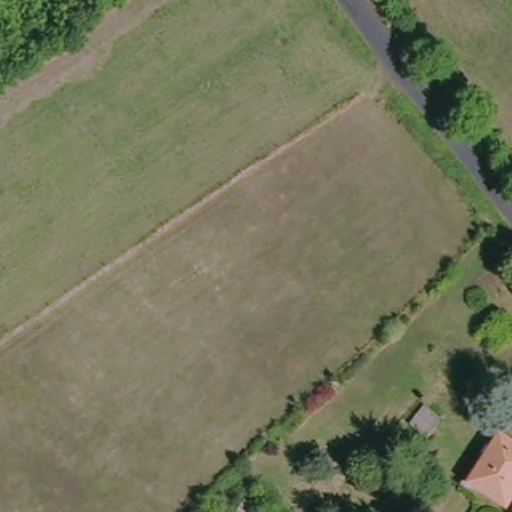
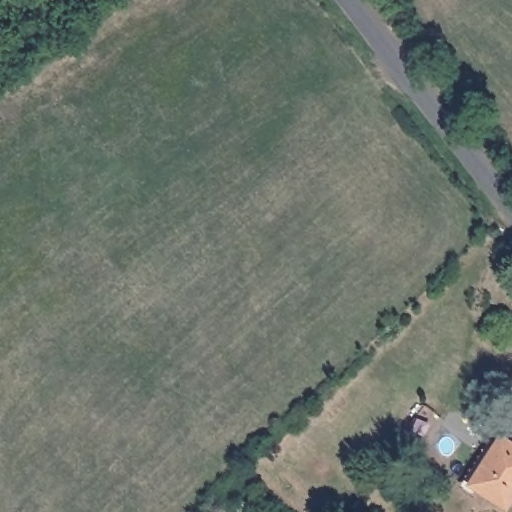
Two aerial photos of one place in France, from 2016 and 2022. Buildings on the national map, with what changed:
unchanged [(479,484),(508,438),(512,441),(512,504),(479,484)]

